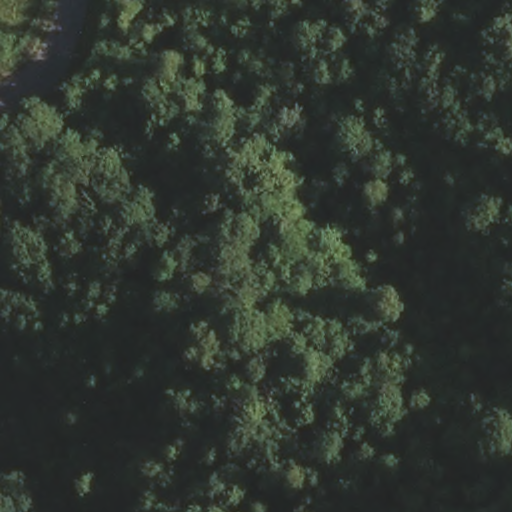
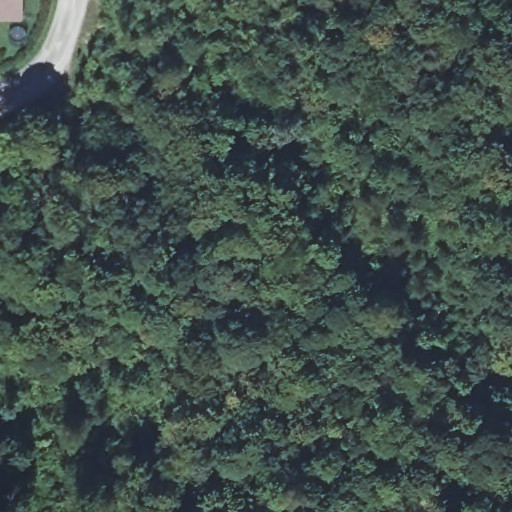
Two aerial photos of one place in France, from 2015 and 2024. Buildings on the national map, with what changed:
new [(21,19),(0,19),(0,0),(21,0),(21,19)]

